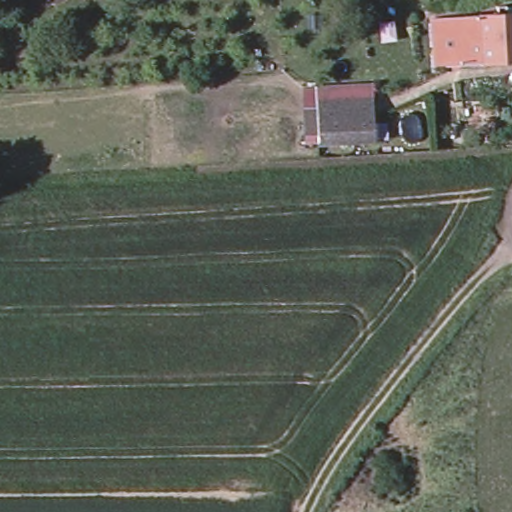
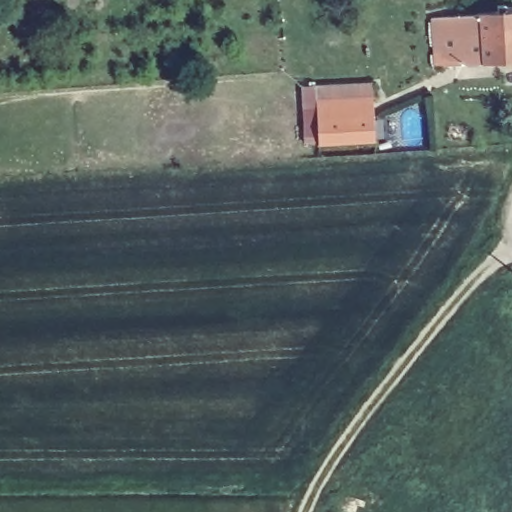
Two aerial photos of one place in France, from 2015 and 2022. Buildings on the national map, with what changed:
unchanged [(512,17),(512,65),(487,67),(485,19),(512,17)]
unchanged [(462,69),(459,20),(485,19),(487,67),(462,69)]
unchanged [(459,20),(462,69),(434,71),(430,22),(459,20)]
unchanged [(382,143),(325,146),(323,103),(379,99),(382,143)]

